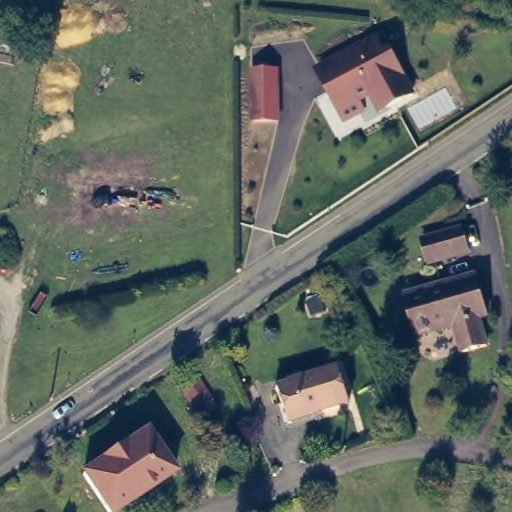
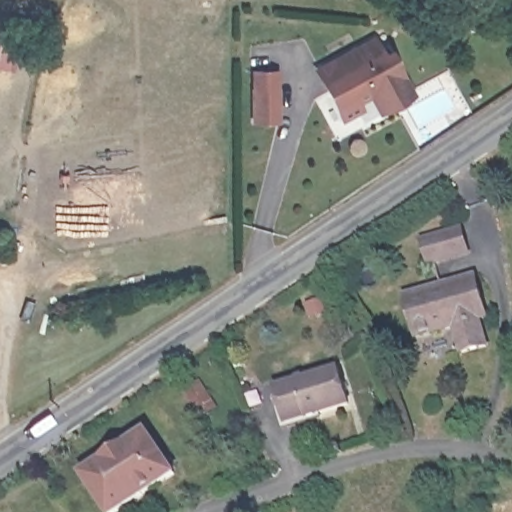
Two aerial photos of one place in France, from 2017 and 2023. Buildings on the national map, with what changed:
unchanged [(313,65),(378,29),(409,93),(375,115),(366,96),(338,116),(313,65)]
unchanged [(251,82),(280,84),(282,120),(249,118),(251,82)]
unchanged [(455,224),(463,249),(420,262),(413,235),(455,224)]
unchanged [(403,299),(445,287),(446,294),(473,287),(483,320),(475,322),(482,350),(460,357),(452,329),(415,339),(403,299)]
unchanged [(337,371),(350,407),(287,428),(275,392),(337,371)]
unchanged [(147,429),(175,471),(140,494),(145,502),(135,508),(130,499),(110,512),(83,471),(147,429)]

